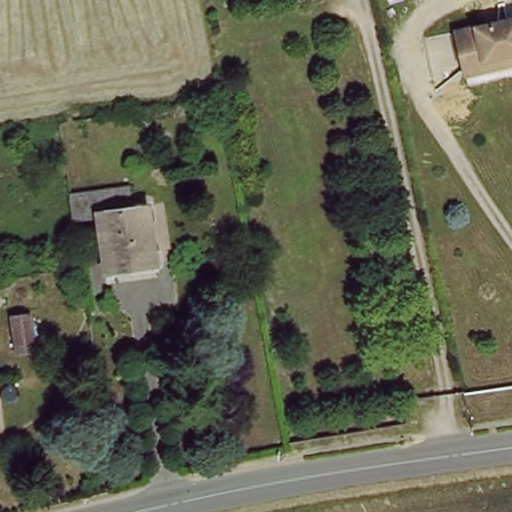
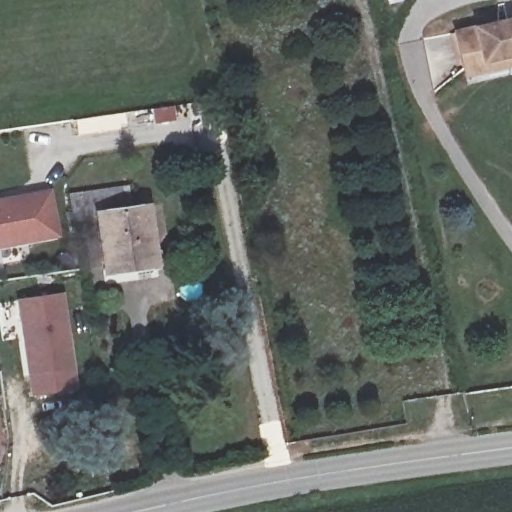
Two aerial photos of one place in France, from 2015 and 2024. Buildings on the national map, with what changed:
unchanged [(512,52),(479,57),(481,68),(459,71),(451,29),(512,18),(512,52)]
new [(112,197),(114,213),(95,214),(96,220),(73,223),(69,194),(129,185),(130,194),(112,197)]
new [(59,237),(0,249),(0,199),(51,189),(59,237)]
unchanged [(95,214),(114,213),(112,197),(130,194),(133,210),(147,209),(157,268),(103,274),(95,214)]
new [(63,292),(79,392),(31,397),(17,300),(63,292)]

